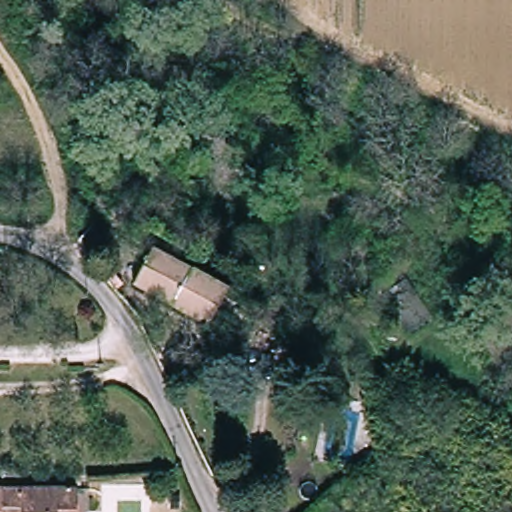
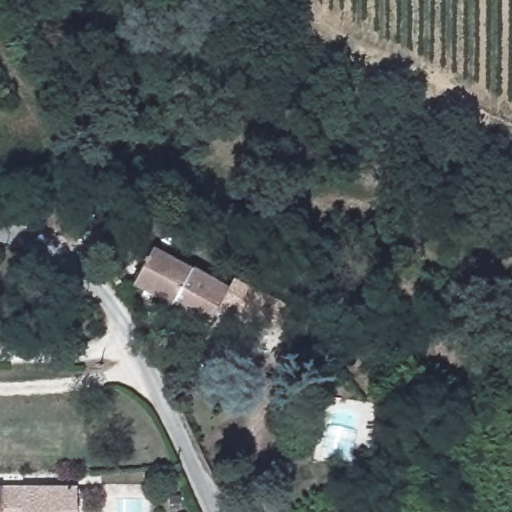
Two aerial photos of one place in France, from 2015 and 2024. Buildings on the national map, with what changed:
unchanged [(212,325),(139,288),(153,250),(232,289),(212,325)]
unchanged [(0,512),(0,491),(13,491),(12,489),(80,490),(81,512),(0,512)]

